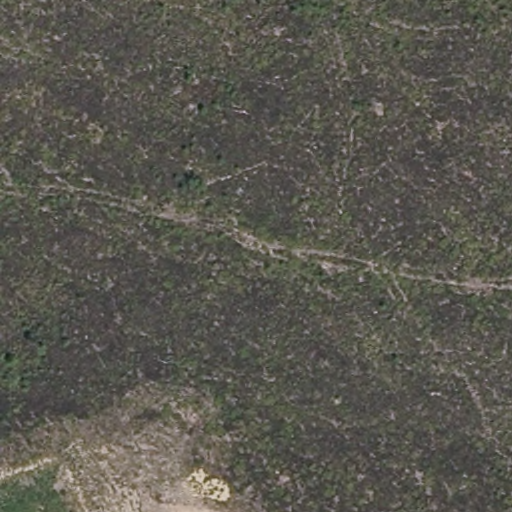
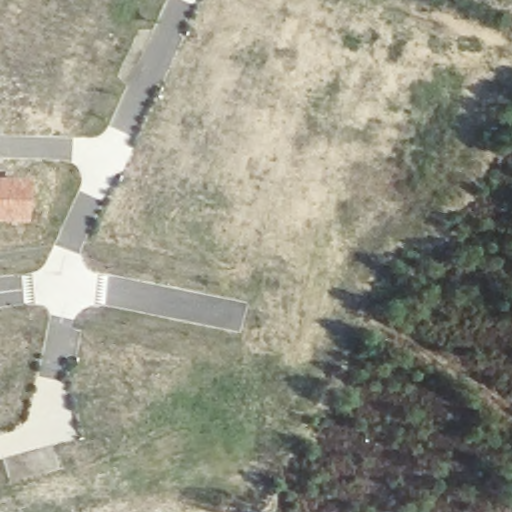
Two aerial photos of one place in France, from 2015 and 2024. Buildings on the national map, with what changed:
new [(25,222),(0,221),(0,179),(27,180),(25,222)]

